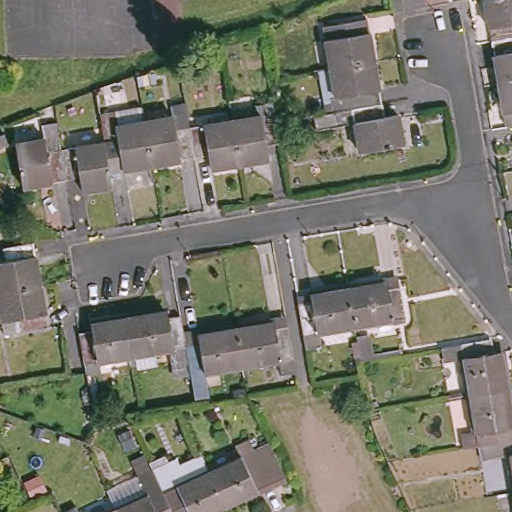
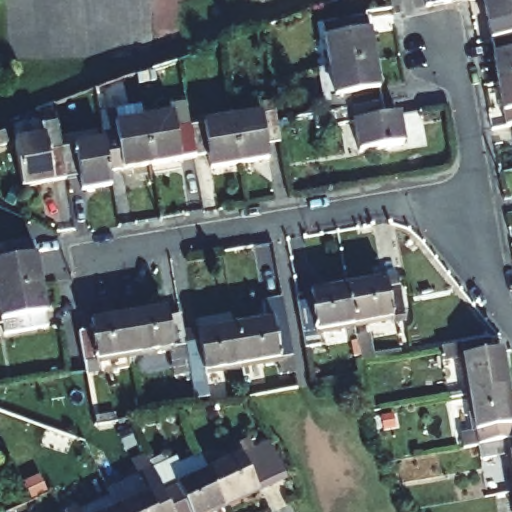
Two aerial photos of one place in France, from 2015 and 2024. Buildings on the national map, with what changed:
unchanged [(482,0),(512,0),(512,31),(487,36),(482,0)]
unchanged [(327,65),(322,38),(335,35),(333,23),(362,18),(370,58),(327,65)]
unchanged [(487,36),(512,31),(512,75),(495,77),(487,36)]
unchanged [(329,108),(327,96),(332,95),(327,65),(370,58),(378,100),(329,108)]
unchanged [(495,77),(512,75),(512,117),(502,119),(495,77)]
unchanged [(396,112),(402,141),(357,148),(352,118),(332,121),(329,108),(378,100),(382,114),(396,112)]
unchanged [(107,139),(102,112),(143,105),(146,118),(153,161),(112,168),(107,139)]
unchanged [(268,142),(270,154),(241,159),(233,116),(277,108),(279,117),(282,140),(268,142)]
unchanged [(190,124),(195,153),(153,161),(146,118),(187,110),(190,124)]
unchanged [(17,141),(47,136),(43,117),(57,115),(62,146),(68,176),(23,183),(17,141)]
unchanged [(241,159),(210,164),(208,151),(195,153),(190,124),(233,116),(241,159)]
unchanged [(112,168),(115,182),(83,187),(81,174),(68,176),(62,146),(107,139),(112,168)]
unchanged [(0,290),(0,259),(3,258),(1,245),(30,240),(37,283),(0,290)]
unchanged [(393,277),(395,285),(409,282),(415,312),(365,322),(358,284),(393,277)]
unchanged [(45,324),(1,332),(0,326),(0,290),(37,283),(45,324)]
unchanged [(323,290),(358,284),(365,322),(328,328),(332,344),(318,346),(311,302),(325,299),(323,290)]
unchanged [(166,317),(182,315),(187,345),(191,375),(177,377),(173,350),(137,356),(132,328),(130,317),(165,311),(166,317)]
unchanged [(132,328),(137,356),(88,364),(82,332),(94,331),(93,322),(130,317),(132,328)]
unchanged [(277,328),(290,327),(298,376),(284,379),(281,361),(244,366),(238,328),(275,322),(277,328)]
unchanged [(187,345),(200,342),(199,335),(238,328),(244,366),(205,373),(210,402),(196,404),(191,375),(187,345)]
unchanged [(498,344),(504,381),(465,387),(457,337),(490,332),(492,344),(498,344)]
unchanged [(510,419),(505,419),(506,432),(475,437),(465,387),(504,381),(510,419)]
unchanged [(247,450),(242,438),(257,431),(262,442),(270,439),(275,436),(291,471),(285,474),(277,477),(230,500),(214,465),(247,450)]
unchanged [(512,431),(512,485),(510,485),(505,448),(477,453),(475,437),(506,432),(512,431)]
unchanged [(205,512),(180,512),(168,487),(214,465),(230,500),(205,512)]
unchanged [(166,482),(168,487),(180,512),(124,512),(120,504),(166,482)]
unchanged [(512,485),(512,494),(510,485),(512,485)]
unchanged [(82,502),(86,512),(68,512),(67,509),(82,502)]
unchanged [(124,512),(105,512),(120,504),(124,512)]

